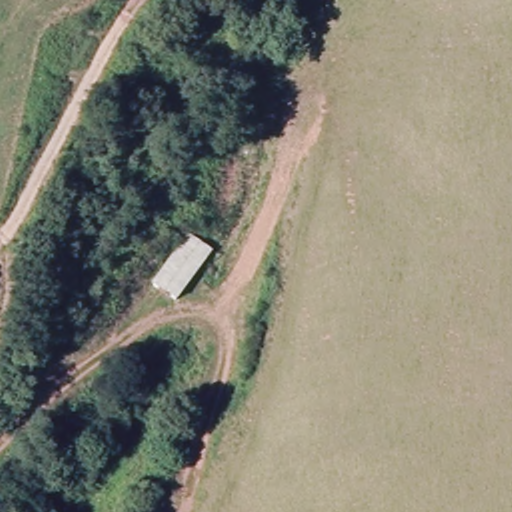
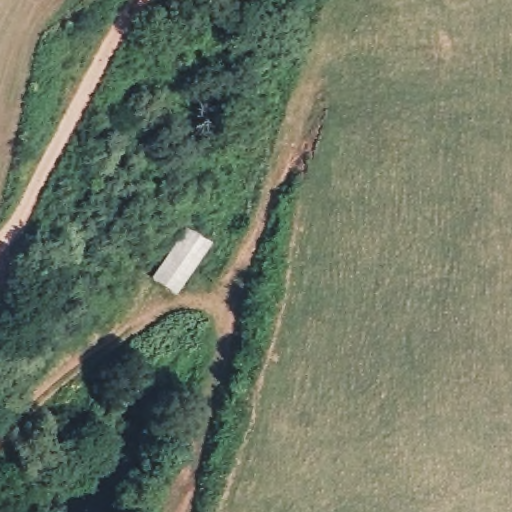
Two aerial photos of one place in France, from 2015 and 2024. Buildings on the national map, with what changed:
unchanged [(186,242),(190,245),(200,230),(218,246),(180,295),(158,278),(186,242)]

